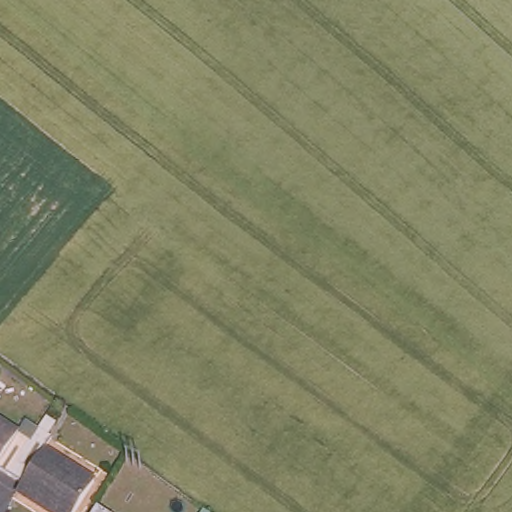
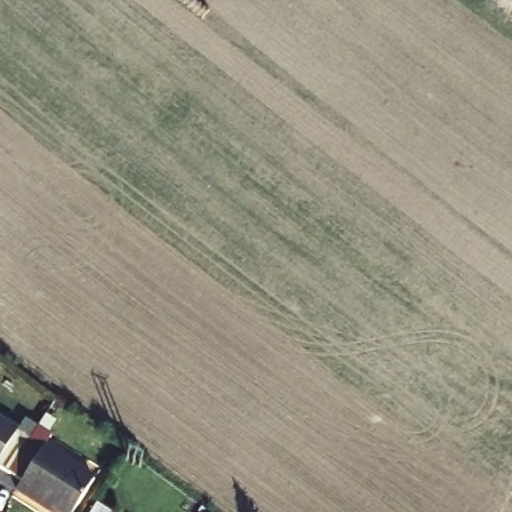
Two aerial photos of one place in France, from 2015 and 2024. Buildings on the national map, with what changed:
unchanged [(0,475),(0,427),(26,444),(5,478),(0,475)]
unchanged [(39,452),(89,486),(71,512),(38,512),(10,495),(17,486),(5,478),(26,444),(33,432),(46,441),(39,452)]
unchanged [(106,512),(91,512),(96,505),(106,512)]

